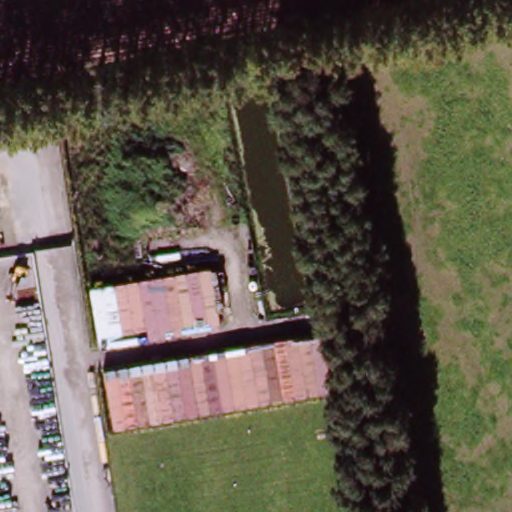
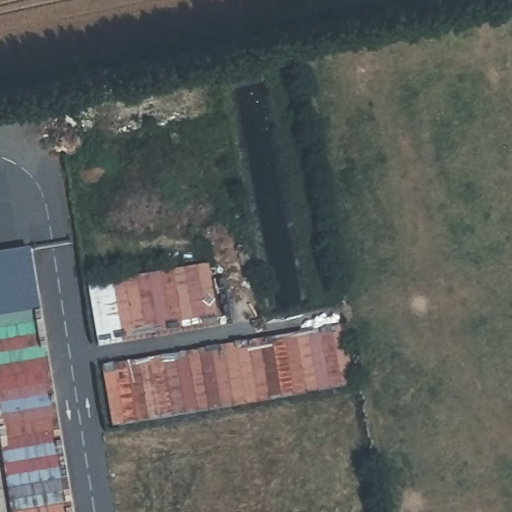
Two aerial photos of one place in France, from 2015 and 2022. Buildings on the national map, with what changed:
new [(72,512),(12,512),(0,437),(0,256),(30,251),(72,512)]
unchanged [(212,266),(221,323),(99,345),(88,286),(212,266)]
unchanged [(326,331),(335,390),(111,430),(101,370),(326,331)]

